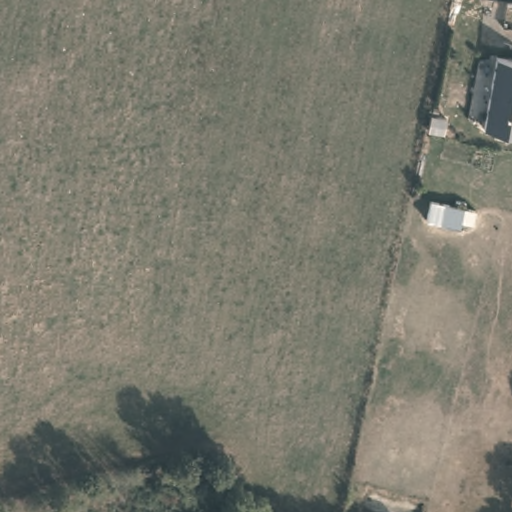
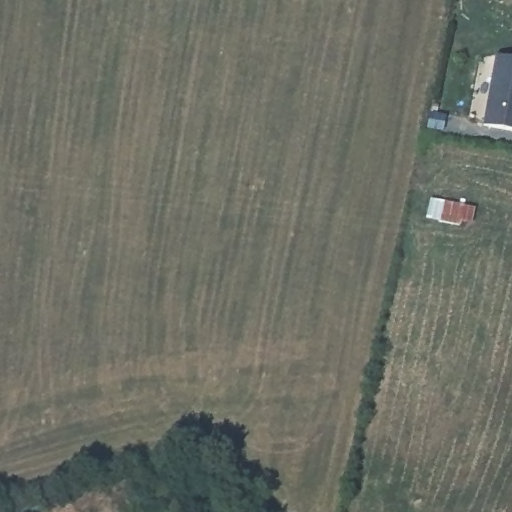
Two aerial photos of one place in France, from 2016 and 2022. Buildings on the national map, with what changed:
unchanged [(512,60),(512,130),(485,124),(498,57),(512,60)]

